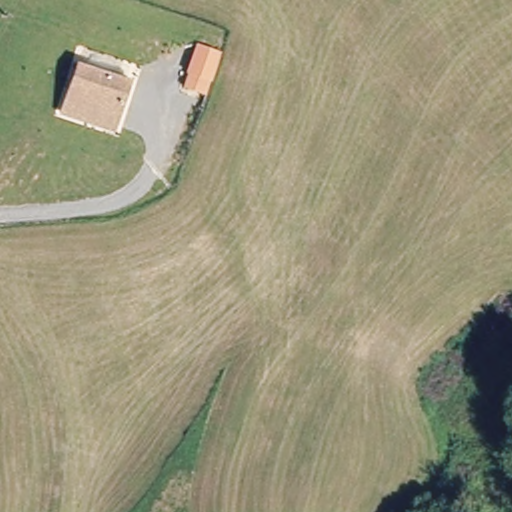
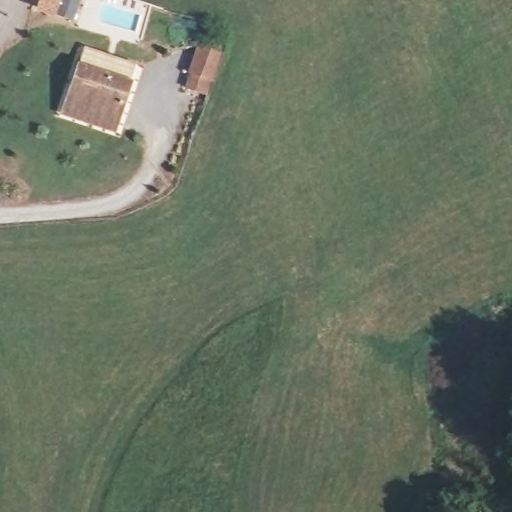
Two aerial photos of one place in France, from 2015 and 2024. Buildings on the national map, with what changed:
new [(71,22),(35,9),(38,0),(80,0),(71,22)]
unchanged [(198,42),(222,52),(208,97),(182,89),(198,42)]
unchanged [(92,122),(63,112),(80,66),(85,68),(132,85),(123,108),(114,130),(92,122)]

